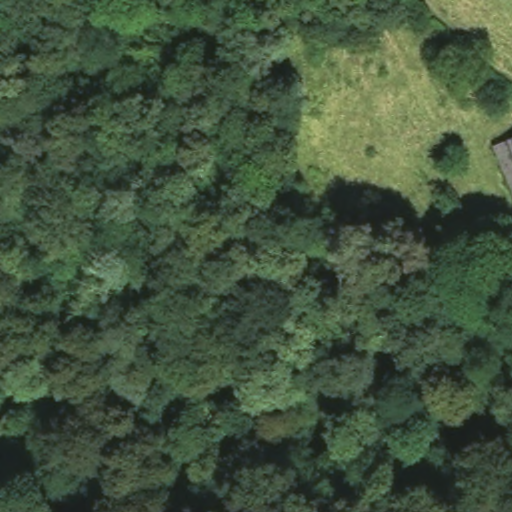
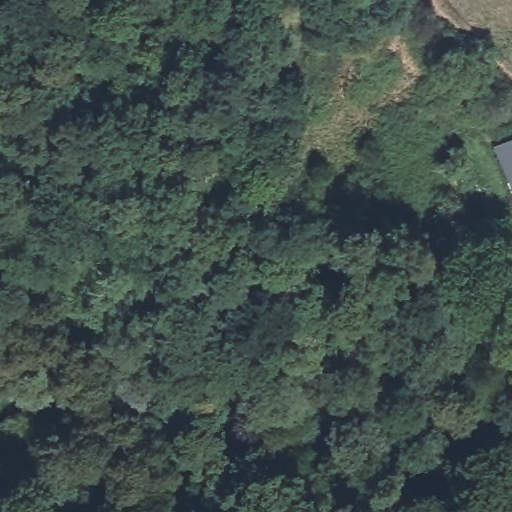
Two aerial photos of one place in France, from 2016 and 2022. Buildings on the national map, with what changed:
unchanged [(484,144),(512,134),(512,210),(510,211),(484,144)]

